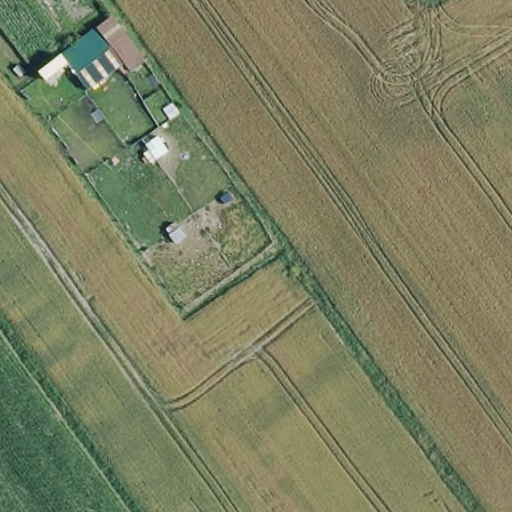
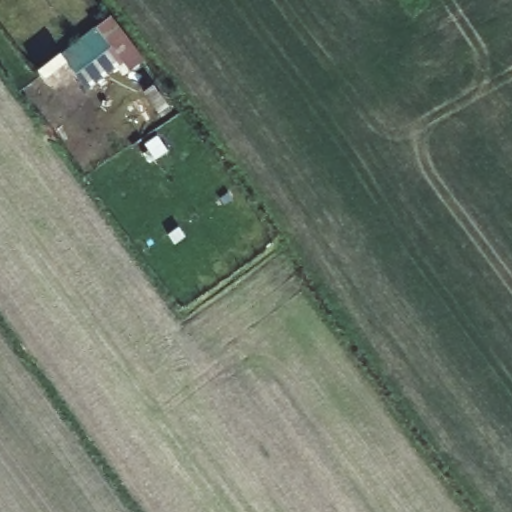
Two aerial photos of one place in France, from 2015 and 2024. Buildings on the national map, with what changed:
unchanged [(143,65),(130,74),(110,50),(73,75),(59,57),(110,20),(143,65)]
unchanged [(50,65),(57,75),(45,83),(38,73),(50,65)]

